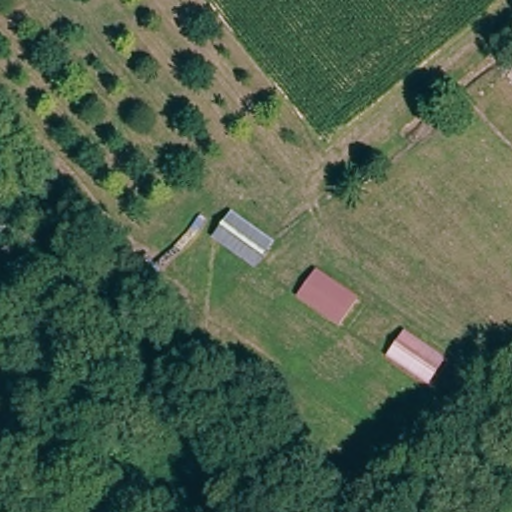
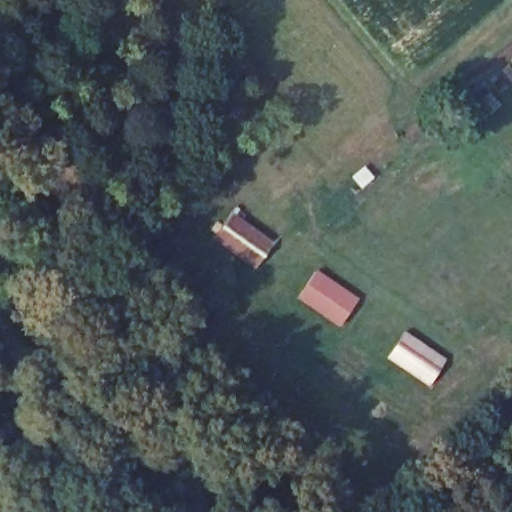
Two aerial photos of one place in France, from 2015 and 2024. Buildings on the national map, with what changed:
unchanged [(235,210),(278,241),(259,269),(214,239),(235,210)]
unchanged [(320,271),(362,298),(342,327),(301,298),(320,271)]
unchanged [(409,331),(451,358),(431,387),(390,358),(409,331)]

